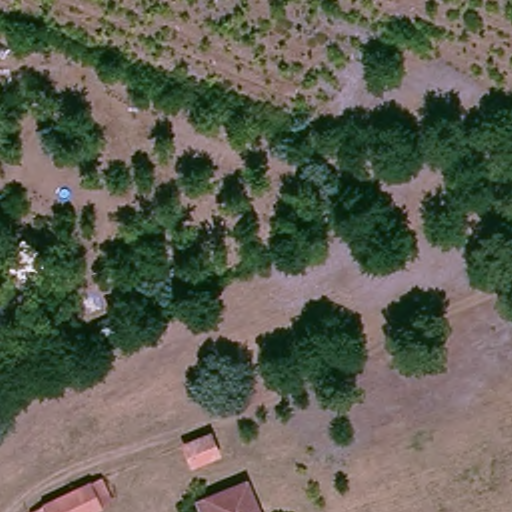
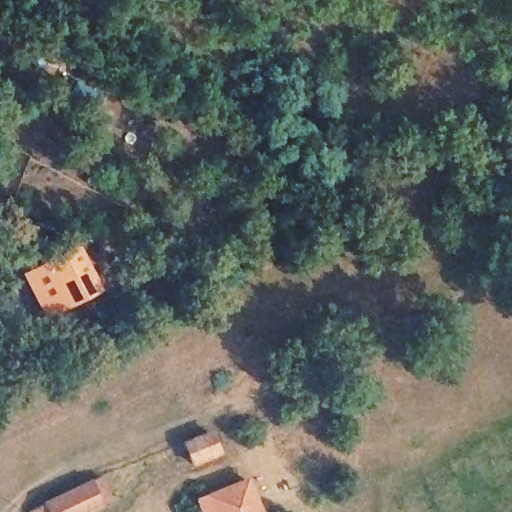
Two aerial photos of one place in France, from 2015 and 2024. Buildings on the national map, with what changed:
new [(74,243),(99,290),(44,320),(19,273),(74,243)]
unchanged [(219,431),(227,453),(199,465),(189,442),(219,431)]
unchanged [(260,512),(204,512),(199,498),(246,478),(260,512)]
unchanged [(99,505),(84,512),(51,512),(47,503),(89,484),(99,505)]

